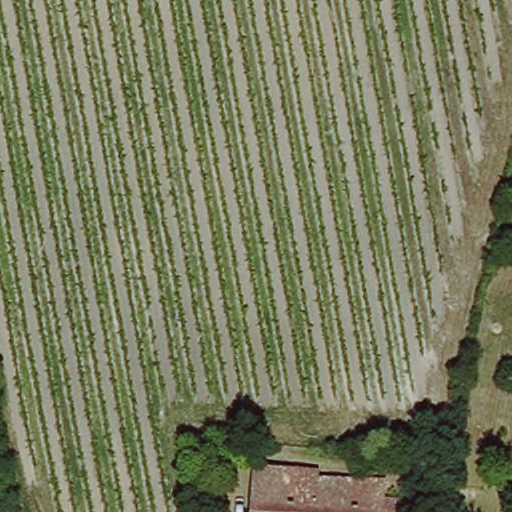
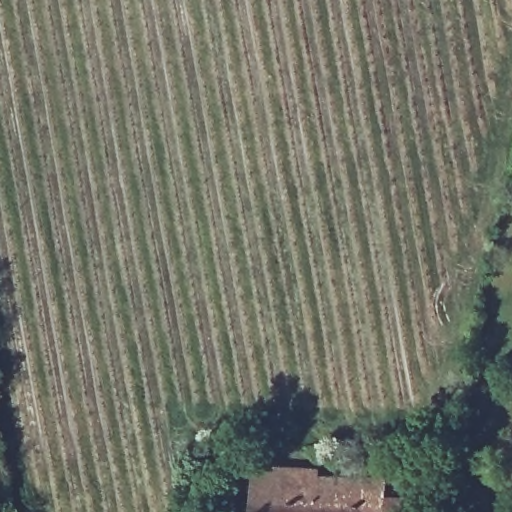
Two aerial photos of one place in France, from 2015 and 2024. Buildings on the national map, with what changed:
unchanged [(254,512),(256,479),(247,479),(247,465),(320,471),(319,477),(405,481),(403,512),(254,512)]

